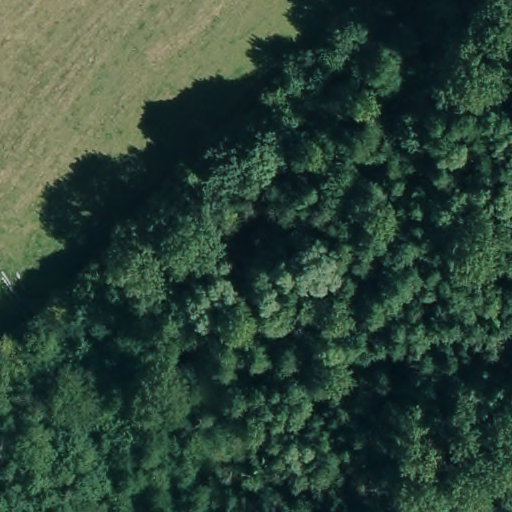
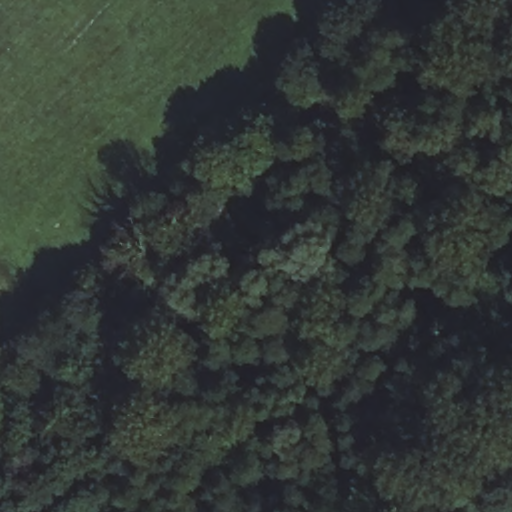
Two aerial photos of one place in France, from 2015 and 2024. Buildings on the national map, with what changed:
[]

